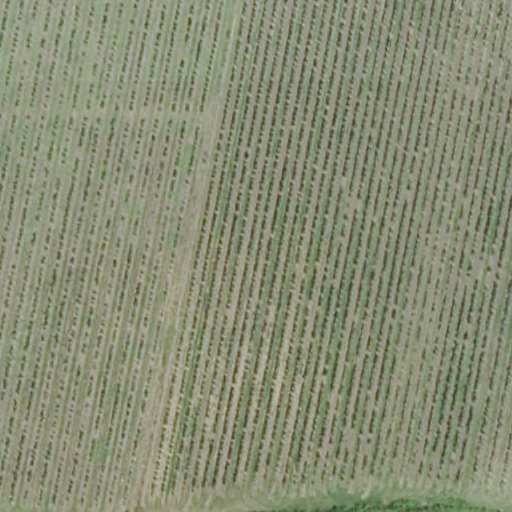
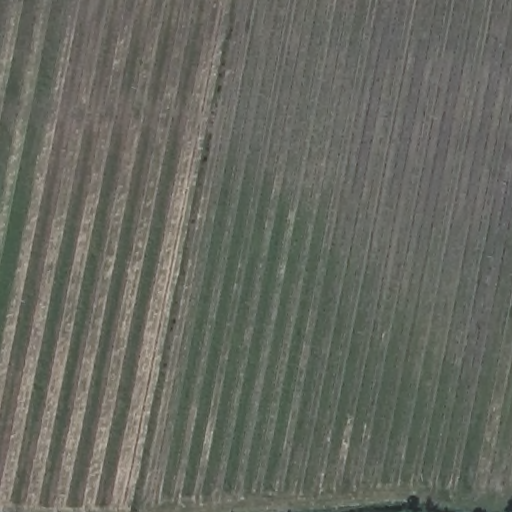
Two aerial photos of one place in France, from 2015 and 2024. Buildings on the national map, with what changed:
[]

